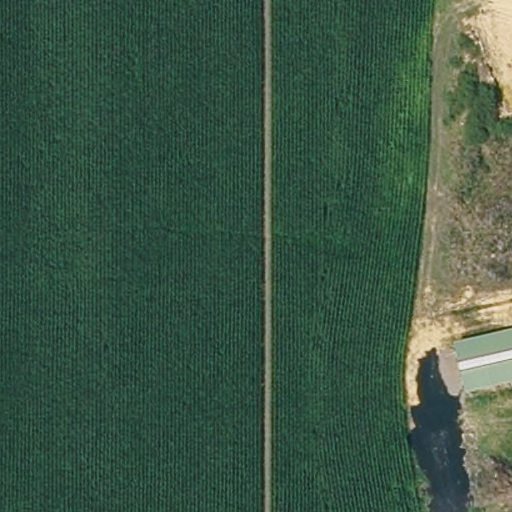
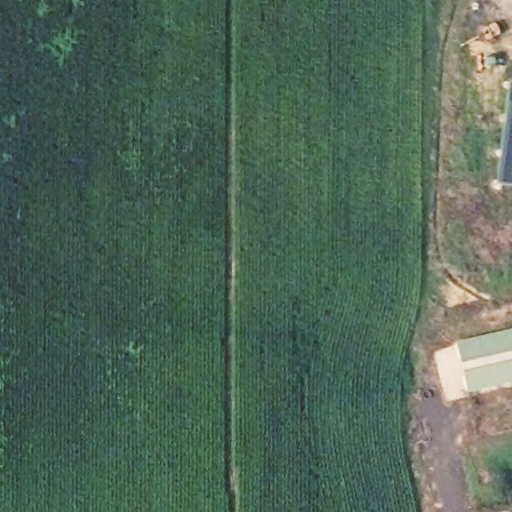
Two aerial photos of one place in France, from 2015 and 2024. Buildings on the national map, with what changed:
new [(507,85),(512,85),(512,187),(496,185),(507,85)]
unchanged [(466,393),(455,342),(512,329),(512,382),(466,393)]

